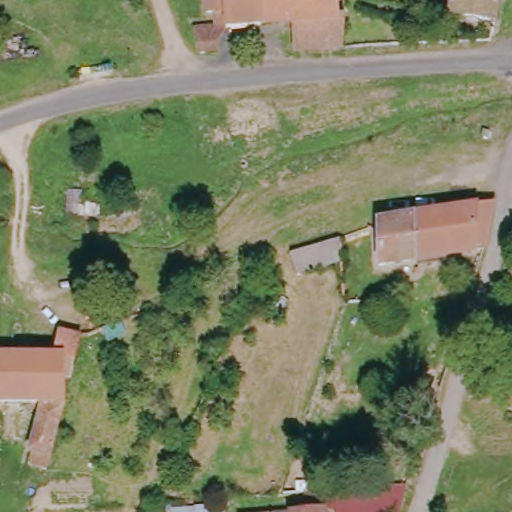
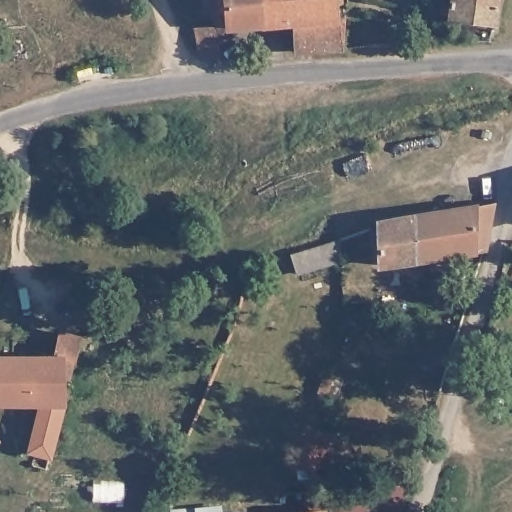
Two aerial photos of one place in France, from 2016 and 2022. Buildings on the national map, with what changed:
unchanged [(304,23),(211,30),(210,47),(201,46),(190,46),(189,25),(207,24),(207,0),(323,0),(323,22),(336,21),(336,51),(305,53),(304,23)]
unchanged [(481,26),(438,21),(443,0),(485,0),(481,26)]
unchanged [(373,270),(374,253),(374,233),(375,221),(482,207),(489,205),(481,253),(373,270)]
unchanged [(336,240),(337,261),(326,263),(324,244),(336,240)]
unchanged [(509,327),(504,354),(485,349),(490,324),(509,327)]
unchanged [(68,377),(61,374),(62,410),(48,461),(25,454),(37,403),(10,402),(0,402),(0,327),(10,327),(7,354),(48,358),(54,330),(77,335),(68,377)]
unchanged [(407,483),(401,512),(334,512),(333,489),(407,483)]
unchanged [(216,512),(166,512),(165,511),(216,509),(216,512)]

